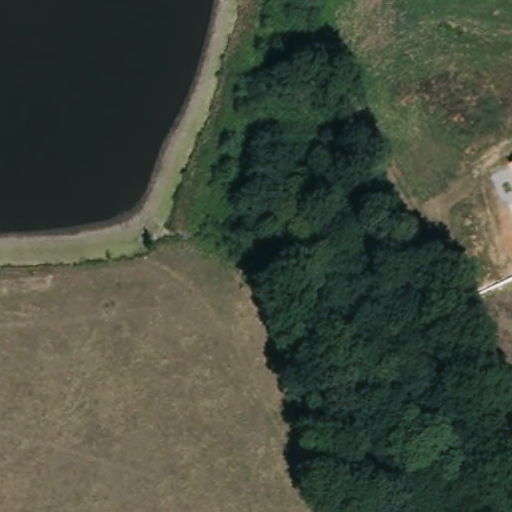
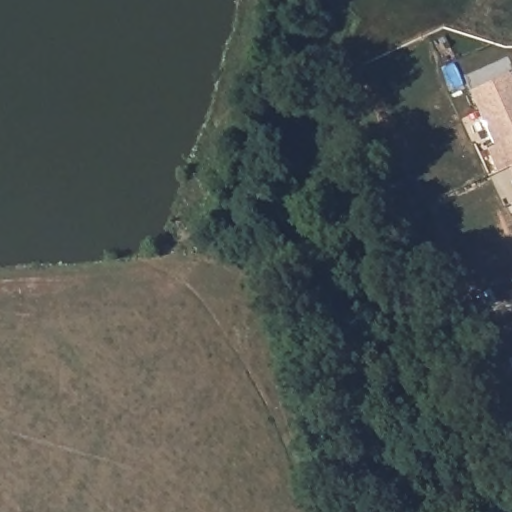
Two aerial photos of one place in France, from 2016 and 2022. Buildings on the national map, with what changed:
new [(512,74),(512,167),(511,167),(499,172),(487,149),(495,145),(471,91),(511,73),(512,74)]
unchanged [(512,167),(512,169),(511,167),(512,167)]

